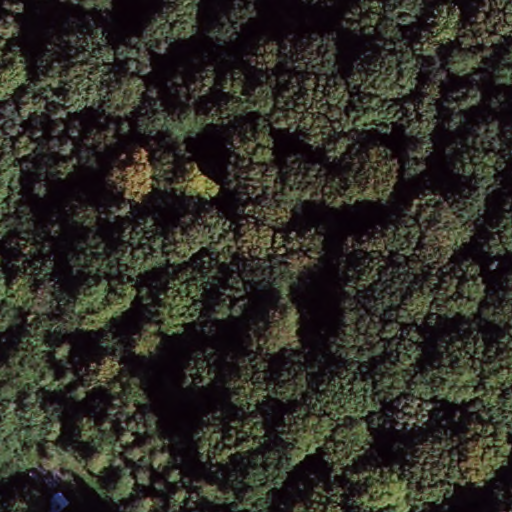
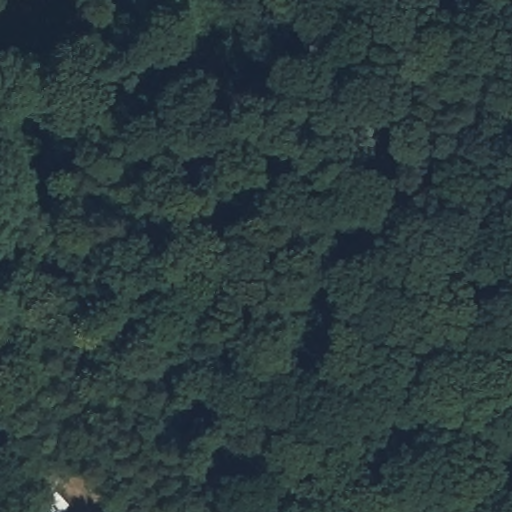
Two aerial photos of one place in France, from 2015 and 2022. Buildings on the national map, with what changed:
unchanged [(43,460),(56,473),(27,499),(14,488),(43,460)]
unchanged [(72,512),(38,512),(34,509),(55,492),(74,510),(72,512)]

